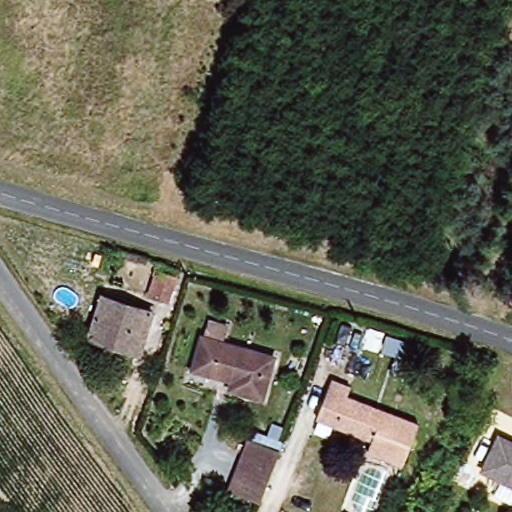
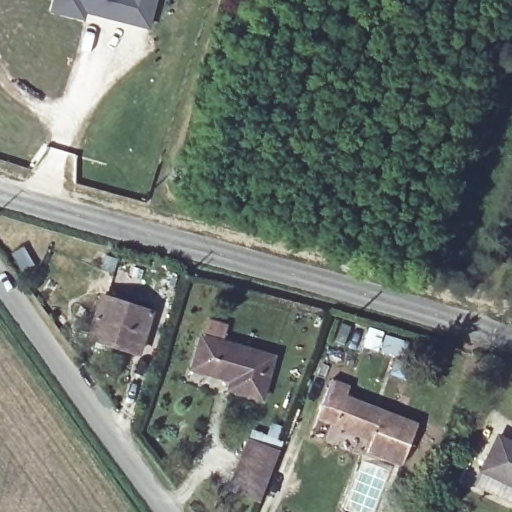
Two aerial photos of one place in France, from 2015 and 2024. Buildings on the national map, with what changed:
new [(149,29),(85,13),(82,20),(51,12),(54,0),(156,0),(149,29)]
unchanged [(147,271),(160,245),(175,251),(165,277),(147,271)]
unchanged [(157,315),(141,357),(114,345),(97,339),(112,297),(126,304),(157,315)]
unchanged [(235,392),(237,383),(197,371),(206,337),(276,356),(265,401),(235,392)]
unchanged [(340,380),(424,416),(401,471),(372,458),(376,446),(323,423),(340,380)]
unchanged [(512,436),(512,485),(484,472),(503,432),(512,436)]
unchanged [(237,484),(256,435),(285,446),(265,496),(237,484)]

